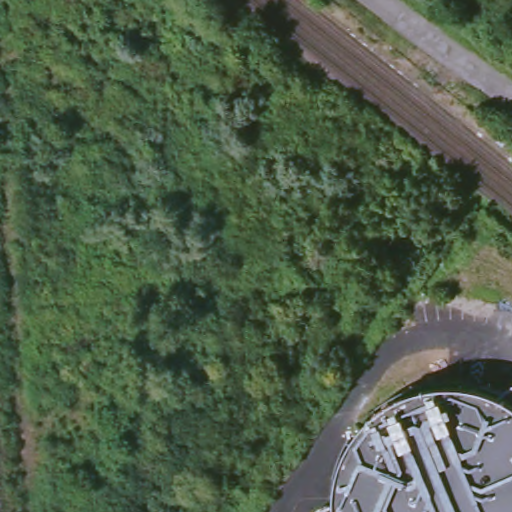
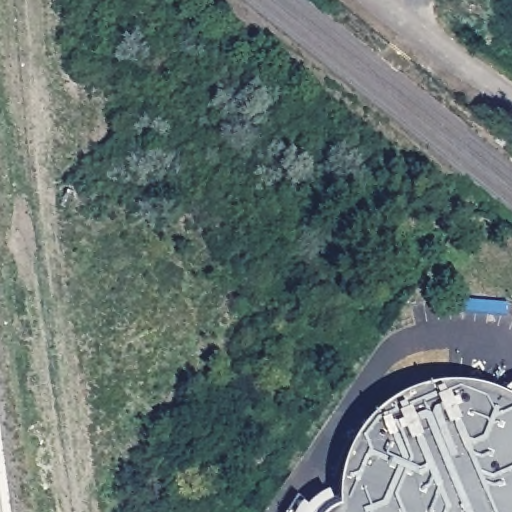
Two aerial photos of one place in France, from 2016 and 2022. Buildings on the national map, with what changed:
unchanged [(337,509),(339,509),(339,501),(340,493),(341,485),(344,470),(349,455),(357,441),(366,428),(377,417),(390,408),(404,400),(418,394),(433,390),(449,389),(465,390),(480,392),(495,397),(499,399),(502,396),(505,392),(512,387),(512,512),(332,512),(333,511),(337,509)]

